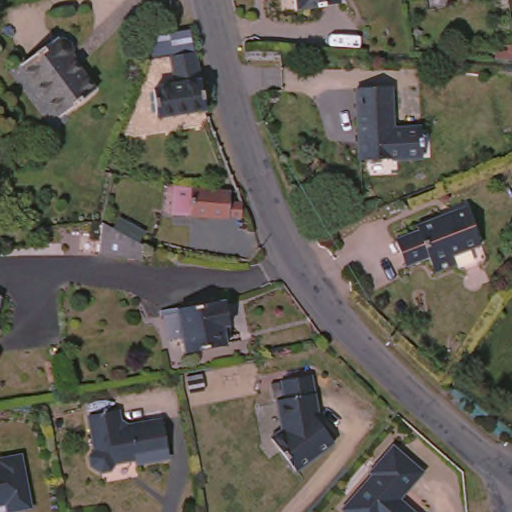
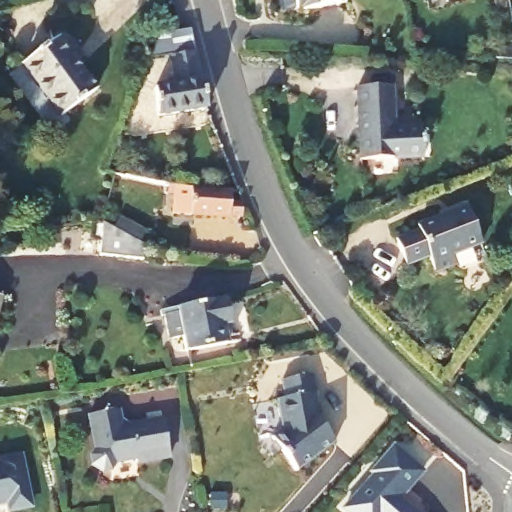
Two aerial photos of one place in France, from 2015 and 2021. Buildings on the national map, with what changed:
unchanged [(291,0),(337,0),(338,9),(293,14),(291,0)]
unchanged [(168,39),(184,34),(197,30),(200,43),(165,52),(140,119),(127,115),(159,35),(168,39)]
unchanged [(58,49),(65,51),(70,56),(71,64),(67,68),(92,99),(60,124),(17,71),(50,44),(54,50),(58,49)]
unchanged [(152,108),(161,105),(159,94),(180,89),(172,60),(202,53),(217,111),(157,126),(152,108)]
unchanged [(392,137),(418,136),(420,166),(362,169),(357,98),(390,96),(392,137)]
unchanged [(247,217),(245,231),(172,217),(175,189),(235,201),(236,214),(247,217)]
unchanged [(459,265),(455,274),(437,281),(431,264),(405,274),(395,248),(421,238),(418,230),(465,213),(482,257),(459,265)]
unchanged [(106,263),(107,239),(121,240),(150,249),(147,268),(106,263)]
unchanged [(185,363),(182,348),(165,351),(160,329),(178,327),(176,317),(223,308),(233,354),(185,363)]
unchanged [(273,401),(280,399),(277,381),(305,376),(312,411),(307,416),(330,445),(295,473),(268,439),(279,431),(273,401)]
unchanged [(117,407),(120,424),(162,416),(170,454),(136,461),(135,457),(115,461),(110,468),(102,469),(92,463),(90,454),(94,447),(87,413),(117,407)]
unchanged [(367,474),(365,472),(386,447),(415,474),(392,500),(405,512),(342,512),(337,508),(367,474)]
unchanged [(1,468),(0,463),(22,459),(32,511),(23,512),(9,512),(7,505),(0,506),(0,468),(1,468)]

